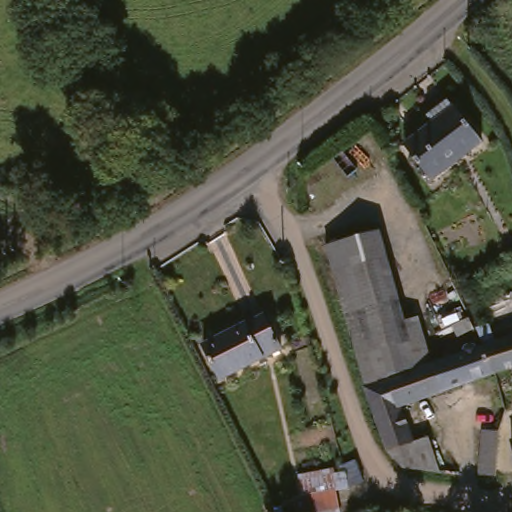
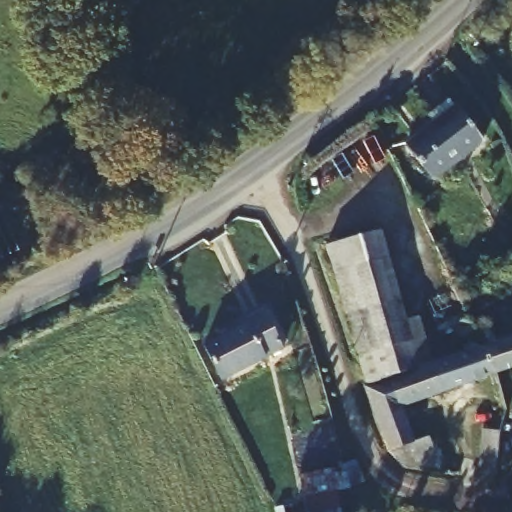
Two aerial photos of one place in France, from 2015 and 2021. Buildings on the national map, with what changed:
unchanged [(407,147),(454,109),(479,143),(431,180),(407,147)]
unchanged [(402,321),(419,318),(429,364),(477,350),(512,339),(512,368),(399,409),(409,441),(424,437),(434,474),(399,470),(385,453),(362,392),(321,246),(378,235),(402,321)]
unchanged [(201,343),(261,314),(278,350),(219,378),(201,343)]
unchanged [(482,429),(500,431),(494,476),(477,474),(482,429)]
unchanged [(512,459),(507,443),(512,442),(512,459)]
unchanged [(353,461),(360,485),(338,491),(343,512),(312,512),(309,499),(299,500),(294,477),(353,461)]

